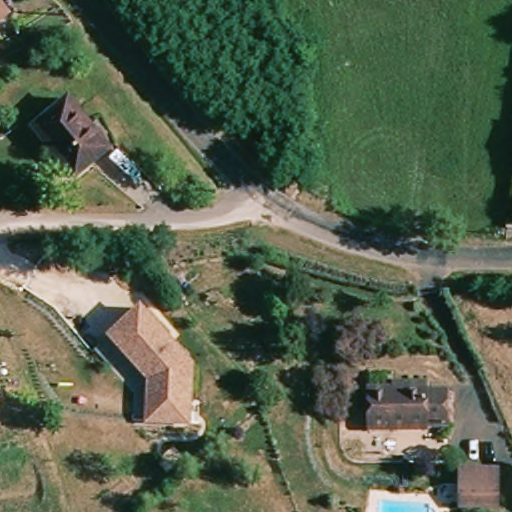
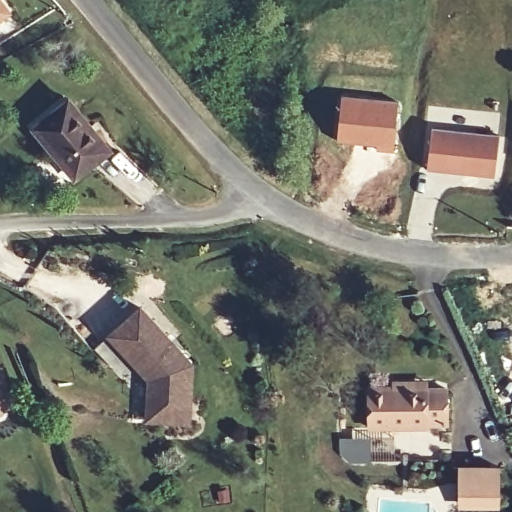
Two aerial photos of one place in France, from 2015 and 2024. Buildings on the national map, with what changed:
unchanged [(0,16),(0,9),(4,14),(0,16)]
new [(341,94),(399,101),(392,152),(335,142),(341,94)]
unchanged [(34,128),(69,100),(89,124),(110,150),(107,153),(75,179),(34,128)]
new [(430,127),(500,136),(495,179),(425,169),(430,127)]
unchanged [(197,363),(192,427),(145,423),(148,379),(107,335),(142,303),(197,363)]
demolished [(274,363),(252,376),(236,348),(256,335),(274,363)]
unchanged [(447,430),(369,428),(369,387),(394,387),(427,387),(427,388),(447,389),(447,430)]
unchanged [(494,497),(494,509),(454,509),(454,502),(454,473),(494,474),(494,497)]

